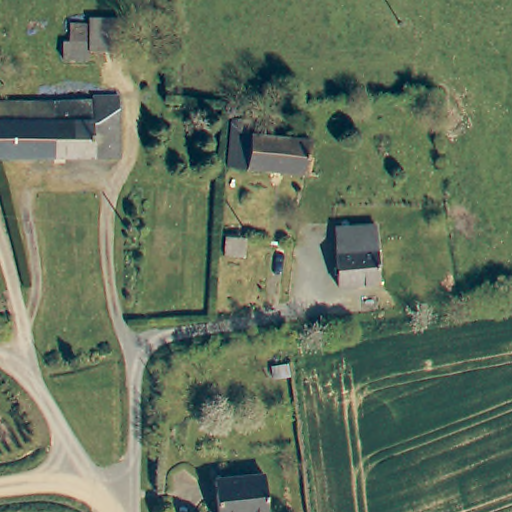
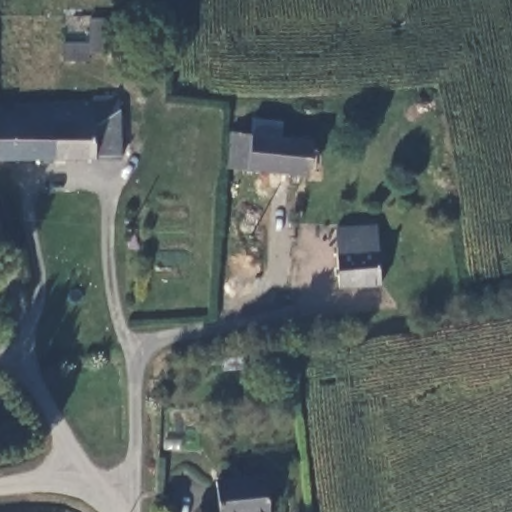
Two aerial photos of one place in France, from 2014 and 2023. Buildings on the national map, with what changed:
unchanged [(63,57),(62,42),(86,41),(84,17),(112,15),(113,36),(115,51),(86,52),(87,56),(63,57)]
unchanged [(94,99),(116,99),(119,156),(54,158),(54,104),(91,103),(94,99)]
unchanged [(54,158),(0,159),(0,106),(54,104),(54,158)]
unchanged [(238,118),(255,119),(254,135),(315,141),(311,177),(233,169),(238,118)]
unchanged [(337,263),(336,238),(378,237),(380,295),(338,297),(337,263)]
unchanged [(269,512),(219,512),(216,482),(264,476),(269,512)]

